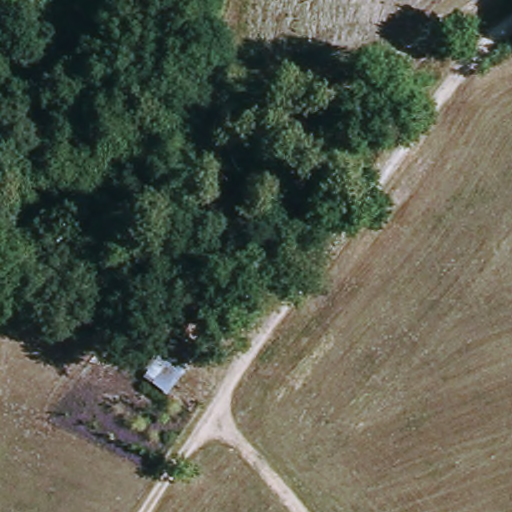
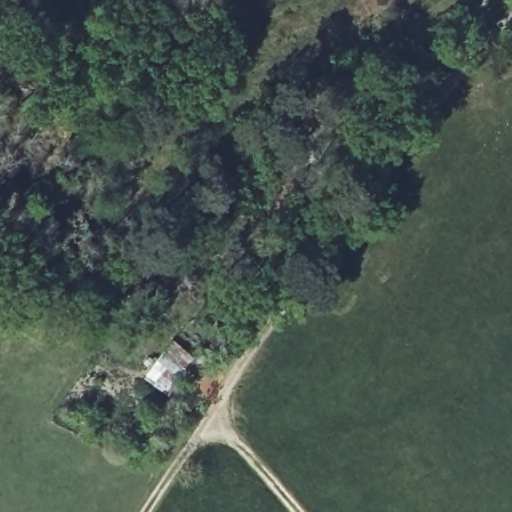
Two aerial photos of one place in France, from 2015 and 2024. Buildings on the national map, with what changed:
unchanged [(165,346),(190,365),(166,398),(141,378),(165,346)]

